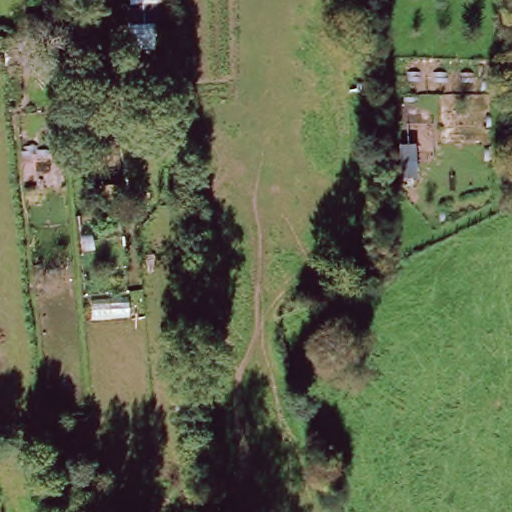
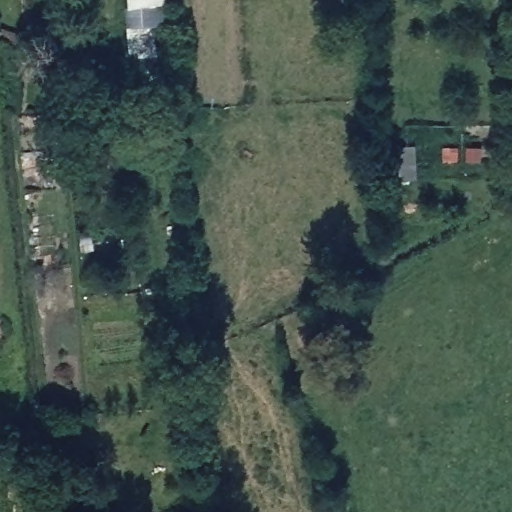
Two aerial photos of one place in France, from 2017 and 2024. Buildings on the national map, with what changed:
unchanged [(162,0),(162,5),(127,7),(126,0),(162,0)]
unchanged [(508,0),(512,0),(512,64),(511,64),(508,0)]

